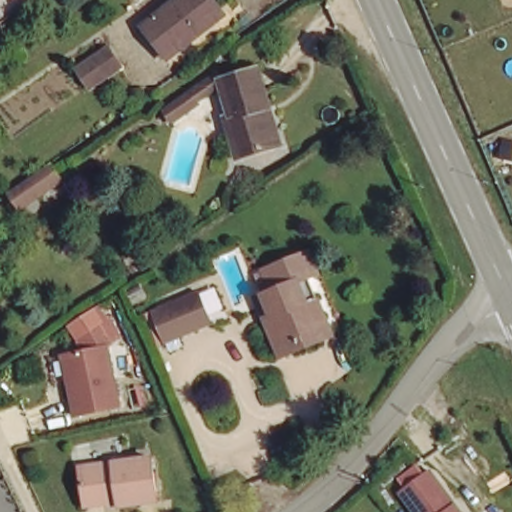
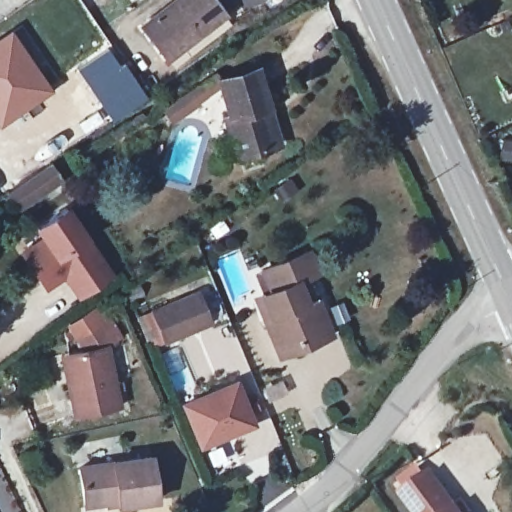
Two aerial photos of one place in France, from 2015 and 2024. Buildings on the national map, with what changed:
unchanged [(218,0),(226,12),(168,54),(145,20),(172,0),(218,0)]
new [(10,29),(52,90),(0,123),(0,35),(10,29)]
unchanged [(81,66),(111,45),(127,65),(95,87),(81,66)]
unchanged [(275,139),(239,151),(226,112),(235,109),(224,75),(263,60),(275,100),(286,136),(275,139)]
unchanged [(52,169),(64,186),(25,214),(12,196),(52,169)]
new [(38,236),(32,227),(66,205),(86,236),(113,274),(75,300),(63,278),(43,292),(17,252),(38,236)]
unchanged [(316,338),(273,357),(256,317),(247,296),(256,292),(266,287),(257,267),(300,249),(311,272),(301,276),(326,335),(316,338)]
unchanged [(198,291),(212,322),(166,342),(152,310),(198,291)]
new [(65,326),(100,305),(121,337),(107,343),(79,348),(65,326)]
unchanged [(73,413),(62,351),(107,343),(123,407),(73,413)]
new [(180,404),(236,378),(257,427),(200,451),(180,404)]
unchanged [(79,467),(150,456),(156,501),(120,506),(120,497),(85,503),(79,467)]
unchanged [(401,492),(431,469),(463,512),(417,512),(401,492)]

